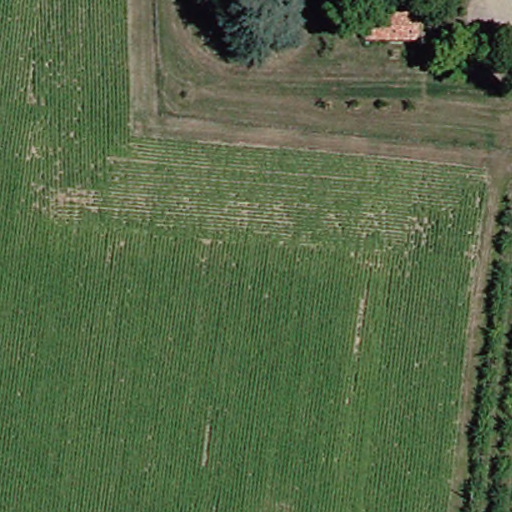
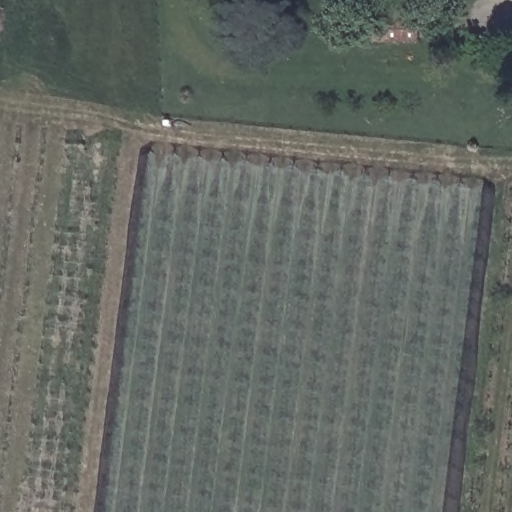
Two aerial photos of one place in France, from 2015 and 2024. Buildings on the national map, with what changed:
unchanged [(422,12),(422,40),(370,37),(371,10),(422,12)]

